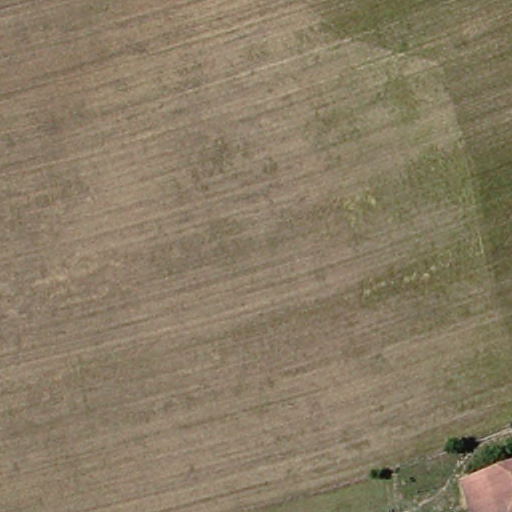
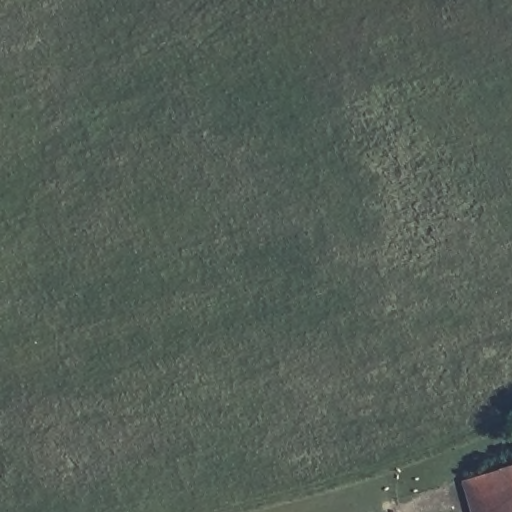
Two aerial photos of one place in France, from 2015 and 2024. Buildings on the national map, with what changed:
unchanged [(484,512),(475,481),(512,471),(512,512),(484,512)]

